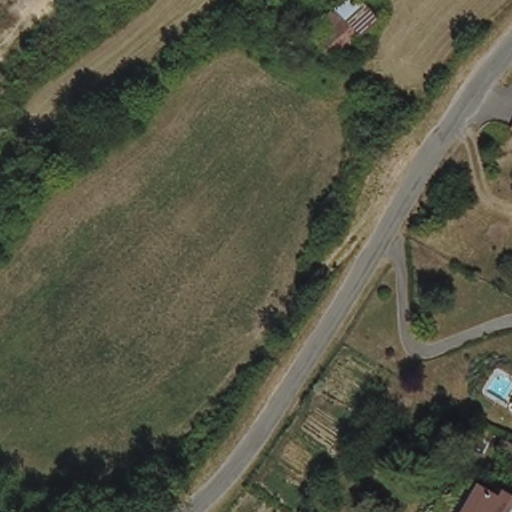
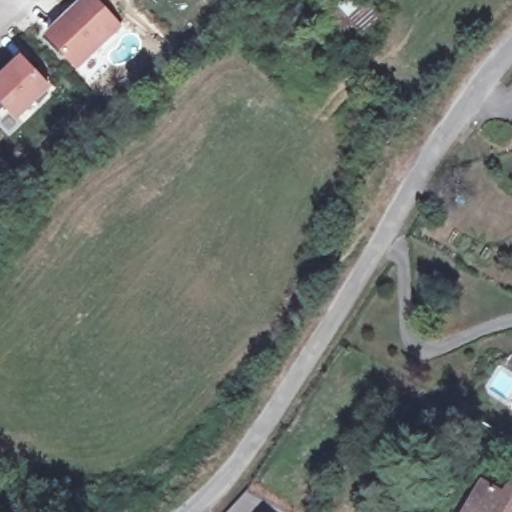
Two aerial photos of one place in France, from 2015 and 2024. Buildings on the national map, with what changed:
new [(82,0),(97,0),(123,28),(78,71),(44,36),(82,0)]
unchanged [(349,0),(368,0),(382,10),(346,60),(319,40),(349,0)]
new [(0,77),(20,57),(52,89),(18,122),(0,103),(0,77)]
unchanged [(511,453),(512,450),(512,454),(511,453)]
unchanged [(509,500),(512,496),(512,512),(470,512),(487,485),(509,500)]

